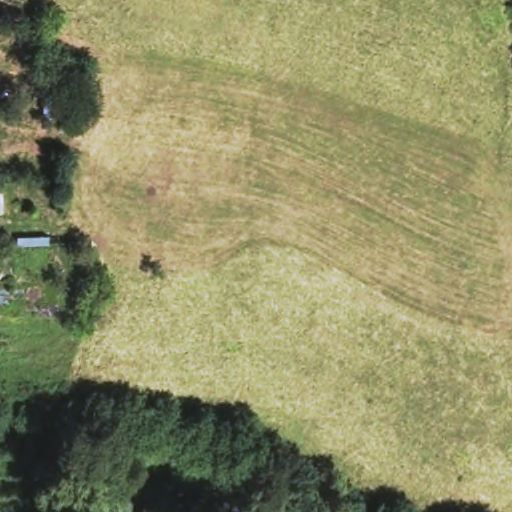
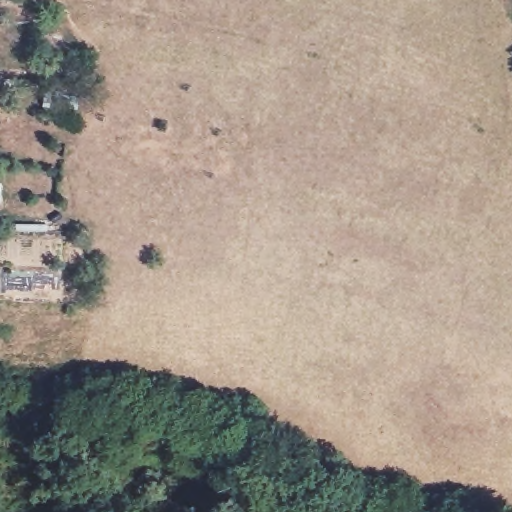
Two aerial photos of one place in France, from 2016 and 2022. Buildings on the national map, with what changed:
unchanged [(0,209),(0,199),(1,208),(0,209)]

